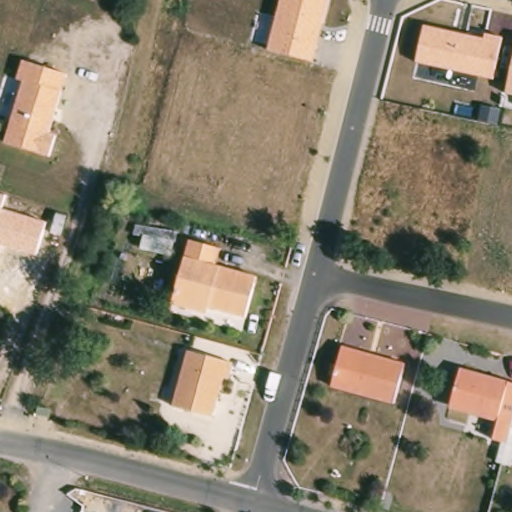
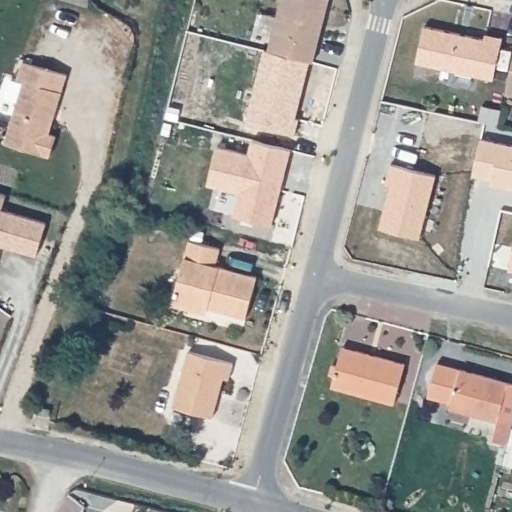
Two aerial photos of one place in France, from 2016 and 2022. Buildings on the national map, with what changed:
unchanged [(314,62),(269,50),(281,0),(328,0),(314,62)]
unchanged [(483,32),(502,36),(492,77),(414,62),(423,24),(482,37),(483,32)]
new [(296,116),(300,117),(295,132),(246,120),(263,48),(269,50),(308,60),(296,116)]
unchanged [(506,93),(512,62),(512,94),(506,93)]
unchanged [(65,79),(47,137),(54,140),(48,161),(3,147),(21,86),(15,84),(21,66),(65,79)]
new [(248,154),(252,139),(290,149),(283,176),(271,224),(233,215),(238,192),(206,184),(216,146),(248,154)]
new [(389,184),(384,182),(389,164),(434,175),(418,237),(378,227),(389,184)]
unchanged [(1,245),(0,247),(0,195),(5,196),(1,210),(46,222),(38,254),(1,245)]
unchanged [(219,254),(214,270),(256,282),(245,322),(201,310),(199,317),(172,308),(189,246),(219,254)]
unchanged [(331,391),(334,380),(329,378),(332,368),(337,370),(342,351),(404,368),(393,408),(331,391)]
unchanged [(231,367),(227,383),(221,382),(210,421),(172,410),(188,354),(231,367)]
unchanged [(509,387),(507,392),(512,393),(512,424),(499,421),(498,426),(480,422),(482,416),(451,407),(460,373),(509,387)]

